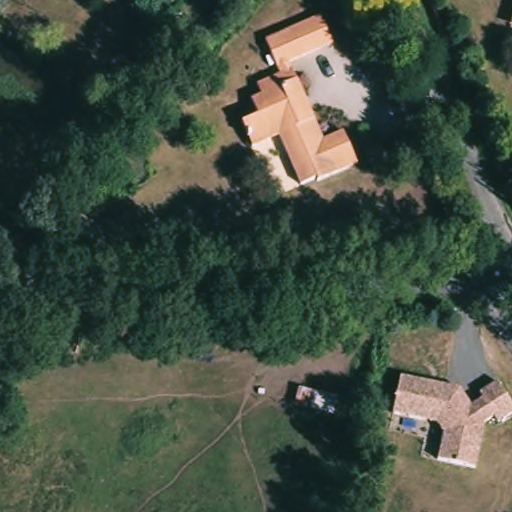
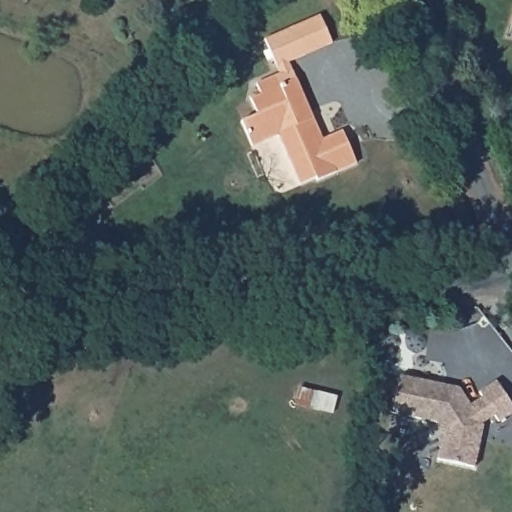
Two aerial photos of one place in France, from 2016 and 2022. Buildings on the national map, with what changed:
unchanged [(316,17),(327,44),(272,67),(261,40),(316,17)]
unchanged [(337,132),(352,166),(313,182),(312,179),(297,186),(276,137),(248,147),(237,123),(253,116),(246,100),(257,95),(252,84),(288,69),(310,120),(319,140),(337,132)]
unchanged [(77,250),(72,231),(69,221),(87,216),(90,227),(95,245),(77,250)]
unchanged [(437,461),(442,432),(435,422),(392,413),(399,377),(462,390),(469,407),(482,398),(479,393),(496,381),(512,405),(512,415),(497,425),(491,417),(484,422),(475,468),(437,461)]

